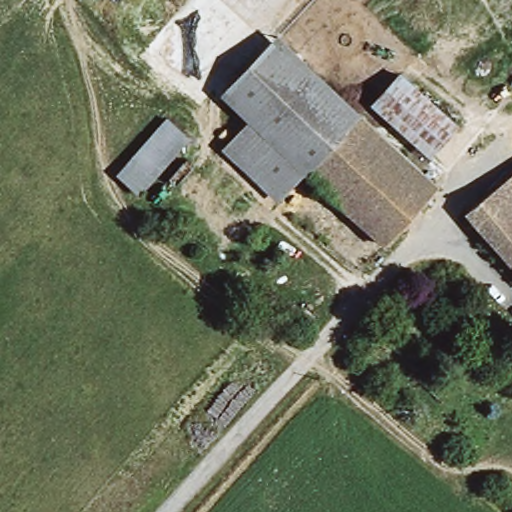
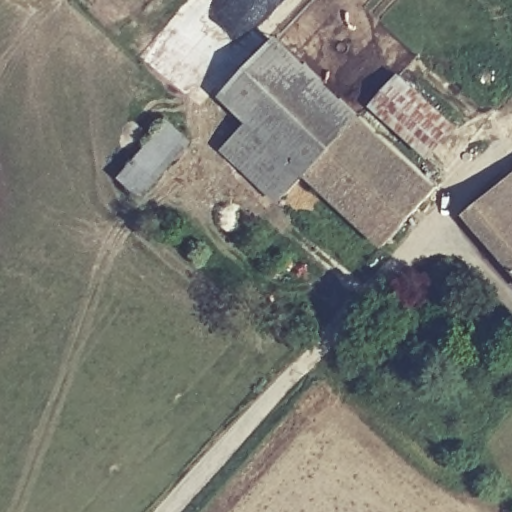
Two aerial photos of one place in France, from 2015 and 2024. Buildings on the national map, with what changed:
unchanged [(250,119),(220,91),(278,31),(306,58),(250,119)]
unchanged [(442,184),(385,245),(304,170),(250,119),(306,58),(442,184)]
unchanged [(461,119),(431,150),(373,96),(402,66),(461,119)]
unchanged [(165,109),(190,131),(138,190),(113,169),(165,109)]
unchanged [(304,170),(280,197),(225,145),(250,119),(304,170)]
unchanged [(512,168),(512,258),(466,206),(512,168)]
unchanged [(465,421),(454,433),(443,423),(454,410),(465,421)]

